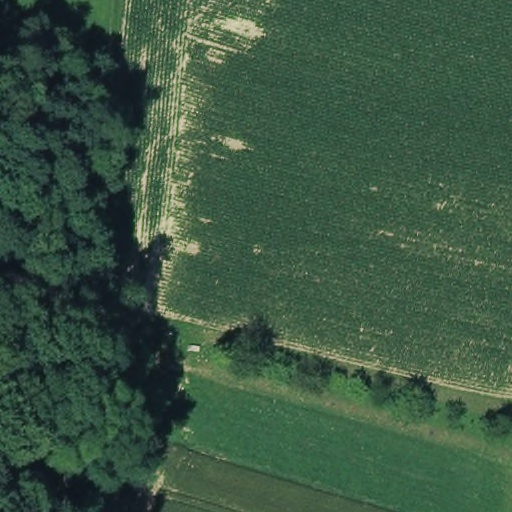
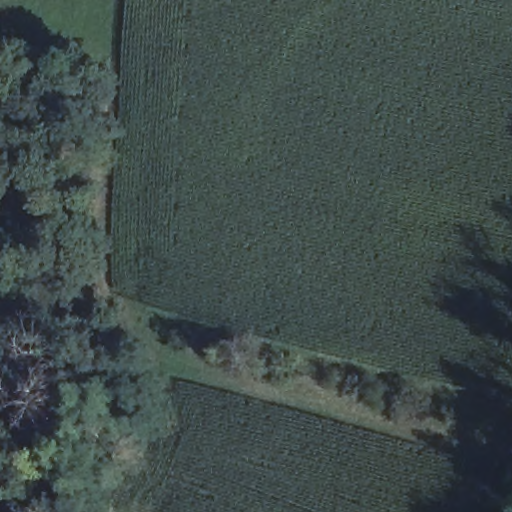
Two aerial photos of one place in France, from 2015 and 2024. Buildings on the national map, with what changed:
[]

